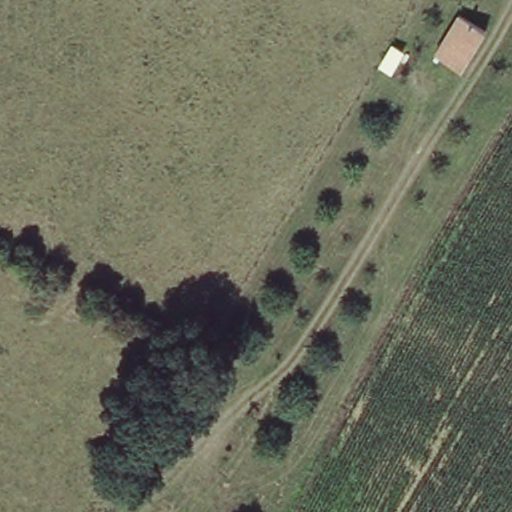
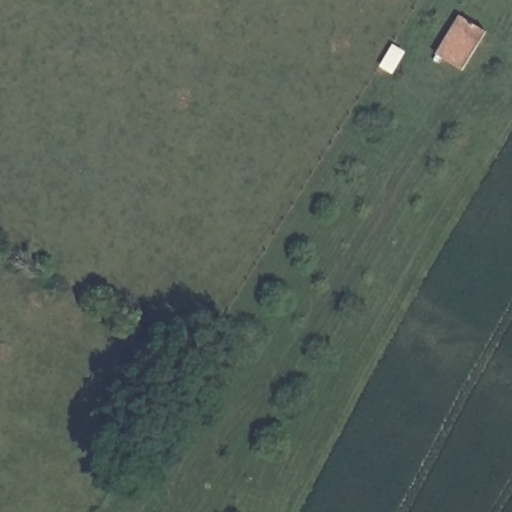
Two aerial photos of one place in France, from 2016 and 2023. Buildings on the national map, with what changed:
unchanged [(432,58),(458,14),(488,32),(464,72),(432,58)]

